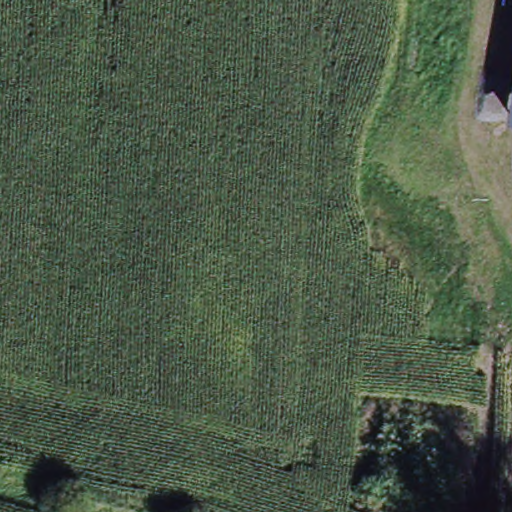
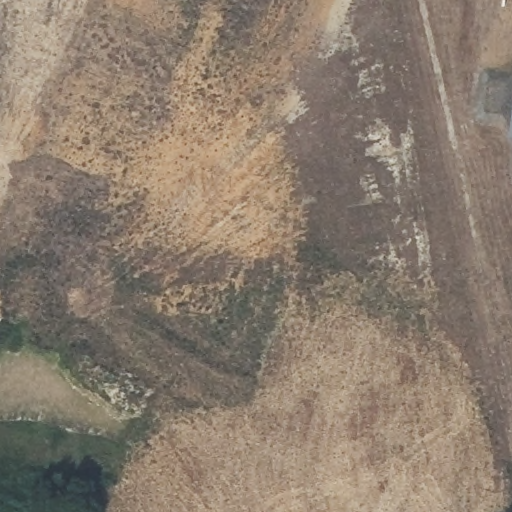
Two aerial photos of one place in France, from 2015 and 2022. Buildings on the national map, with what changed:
unchanged [(512,124),(512,134),(511,133),(512,124)]

